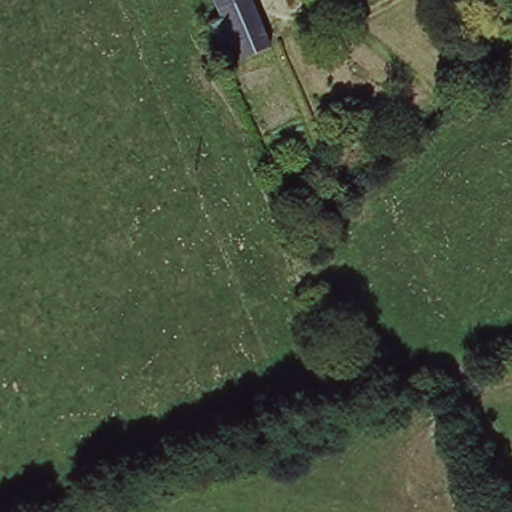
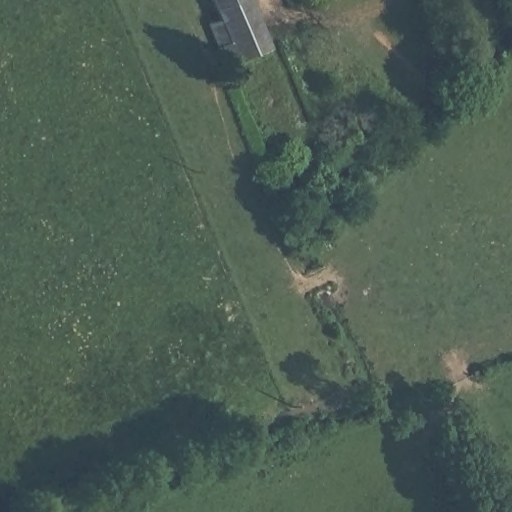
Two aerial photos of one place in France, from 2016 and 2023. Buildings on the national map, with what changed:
unchanged [(215,33),(224,16),(217,0),(250,0),(270,47),(229,68),(215,33)]
unchanged [(489,1),(489,0),(501,0),(489,1)]

